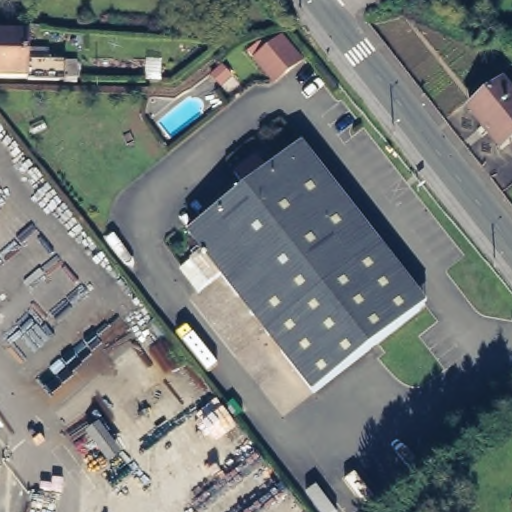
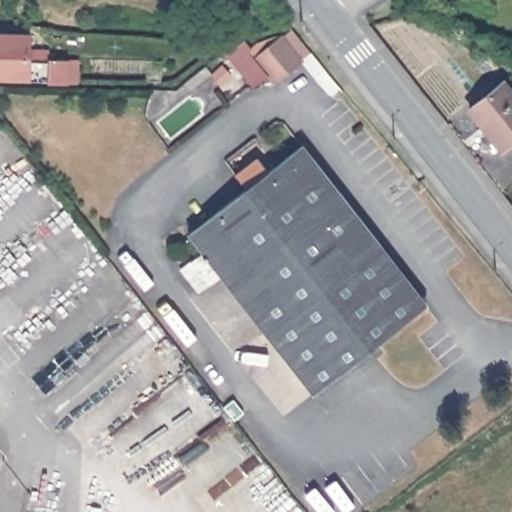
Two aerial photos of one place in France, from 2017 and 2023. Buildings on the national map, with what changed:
unchanged [(0,78),(0,34),(28,34),(28,61),(65,61),(65,80),(28,80),(28,79),(0,78)]
unchanged [(300,59),(272,81),(253,58),(281,36),(300,59)]
unchanged [(505,77),(512,87),(512,135),(504,141),(472,102),(505,77)]
unchanged [(381,246),(267,335),(221,275),(198,292),(180,269),(203,252),(189,234),(302,146),(381,246)]
unchanged [(381,246),(427,304),(313,392),(267,335),(381,246)]

